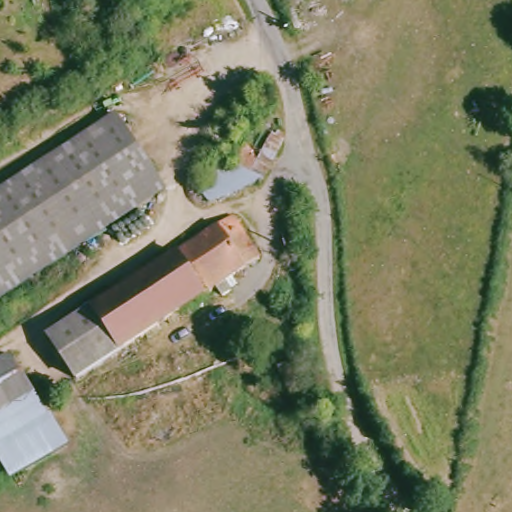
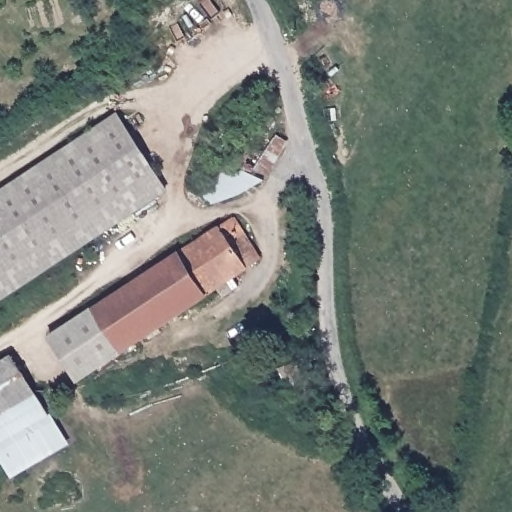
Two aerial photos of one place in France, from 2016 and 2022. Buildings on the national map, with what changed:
unchanged [(282,122),(260,164),(237,151),(260,110),(265,113),(282,122)]
unchanged [(116,116),(120,122),(155,172),(0,283),(0,198),(112,119),(116,116)]
unchanged [(169,191),(0,309),(0,283),(155,172),(169,191)]
unchanged [(241,214),(271,254),(122,363),(92,322),(241,214)]
unchanged [(92,322),(122,363),(102,378),(81,394),(50,352),(54,350),(92,322)]
unchanged [(0,370),(17,358),(76,446),(16,483),(0,454),(0,370)]

